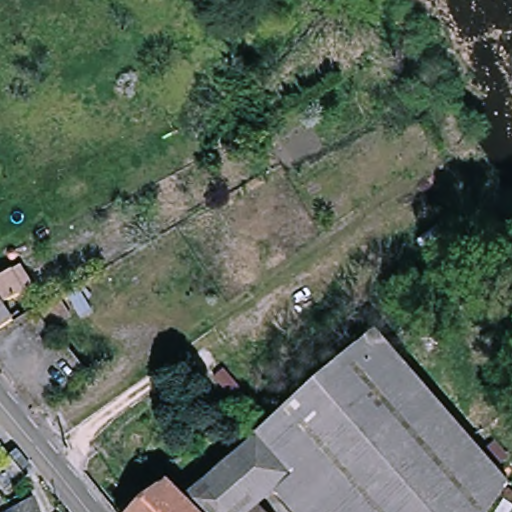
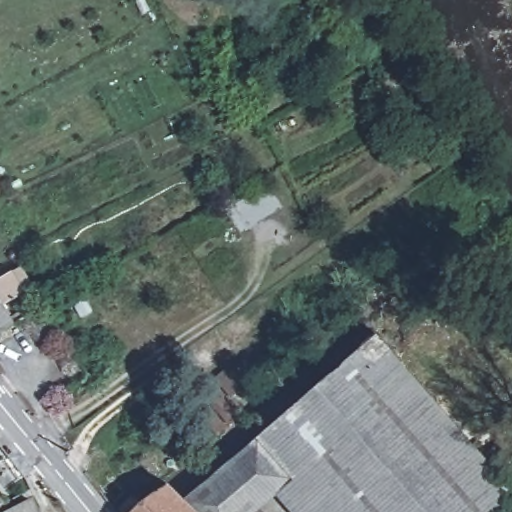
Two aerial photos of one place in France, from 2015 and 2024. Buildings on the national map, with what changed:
unchanged [(25,263),(37,280),(3,300),(15,319),(0,328),(0,278),(25,263)]
unchanged [(73,315),(51,333),(35,310),(60,294),(73,315)]
unchanged [(512,480),(512,481),(491,512),(295,512),(276,490),(292,474),(257,436),(376,328),(512,480)]
unchanged [(257,436),(292,474),(276,490),(260,506),(253,512),(200,512),(188,498),(257,436)]
unchanged [(3,444),(19,464),(0,479),(0,446),(3,444)]
unchanged [(172,481),(188,498),(200,512),(136,512),(172,481)]
unchanged [(0,508),(0,494),(6,502),(0,508)]
unchanged [(33,498),(40,512),(7,512),(33,498)]
unchanged [(260,506),(265,512),(253,512),(260,506)]

